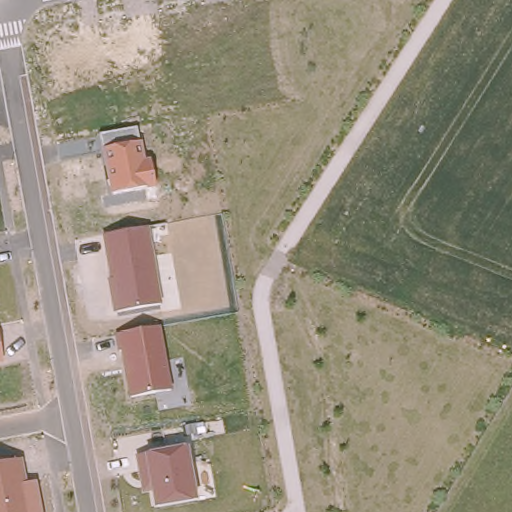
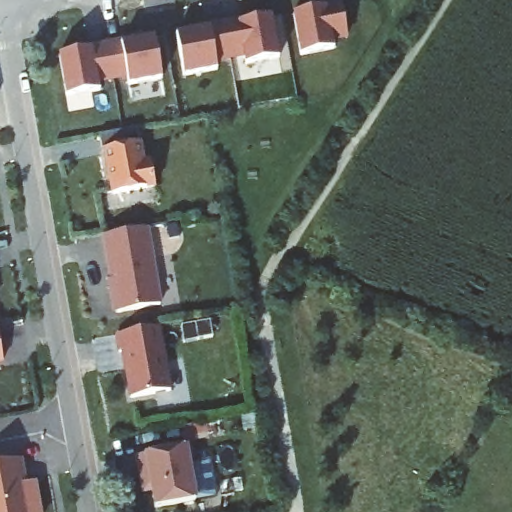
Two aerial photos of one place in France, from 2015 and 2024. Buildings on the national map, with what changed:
new [(343,4),(351,45),(317,51),(315,41),(300,43),(295,12),(343,4)]
new [(280,57),(247,64),(245,53),(217,58),(219,69),(185,75),(178,33),(273,16),(280,57)]
new [(164,78),(130,84),(129,74),(100,79),(102,90),(69,96),(61,54),(156,37),(164,78)]
unchanged [(154,187),(112,195),(103,150),(100,136),(137,128),(140,142),(145,161),(150,160),(154,187)]
unchanged [(149,229),(162,305),(112,313),(107,279),(109,278),(102,236),(149,229)]
unchanged [(160,327),(171,391),(128,397),(120,352),(118,353),(115,335),(160,327)]
unchanged [(0,364),(0,348),(2,363),(0,364)]
unchanged [(145,455),(187,447),(197,501),(154,508),(150,492),(141,494),(135,457),(145,455)]
unchanged [(0,512),(0,463),(22,459),(27,483),(37,482),(42,512),(0,512)]

